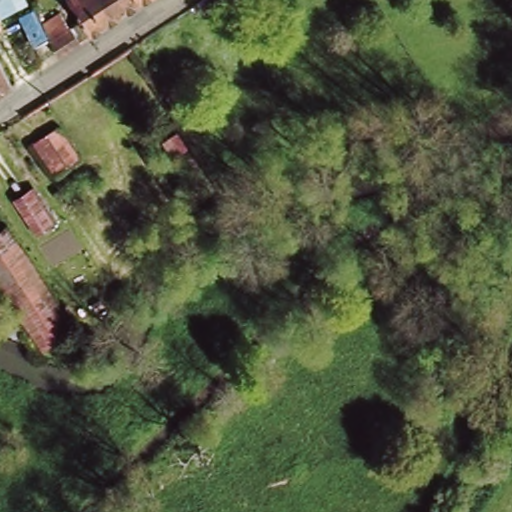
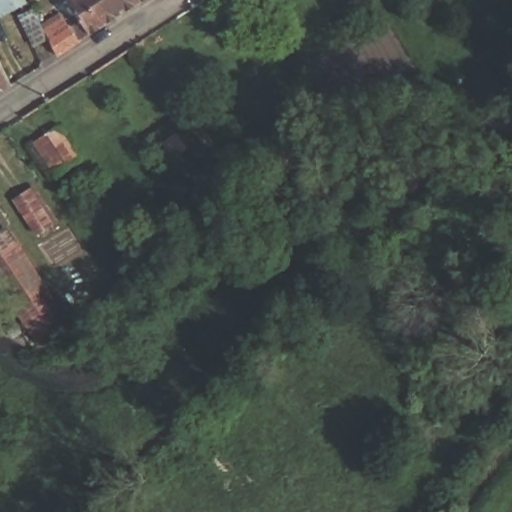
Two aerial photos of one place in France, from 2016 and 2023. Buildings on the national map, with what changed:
unchanged [(31,5),(39,20),(57,8),(67,24),(79,16),(68,0),(135,0),(122,8),(115,13),(54,52),(45,34),(32,41),(17,12),(31,5)]
unchanged [(12,83),(0,90),(0,54),(14,81),(12,83)]
unchanged [(60,125),(82,159),(60,174),(37,140),(60,125)]
unchanged [(33,185),(53,219),(32,230),(13,197),(33,185)]
unchanged [(67,325),(39,344),(0,284),(0,230),(4,228),(67,325)]
unchanged [(95,356),(87,361),(84,357),(92,351),(95,356)]

